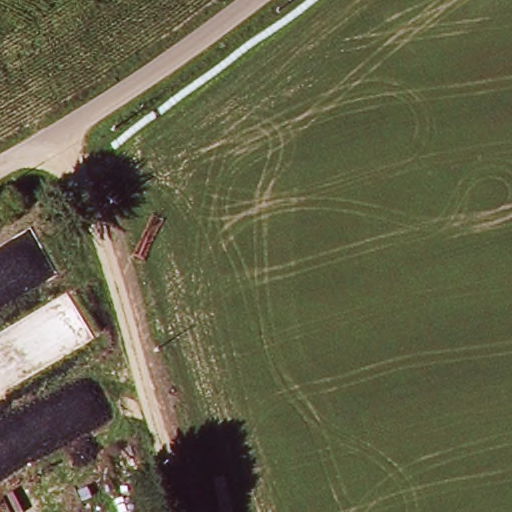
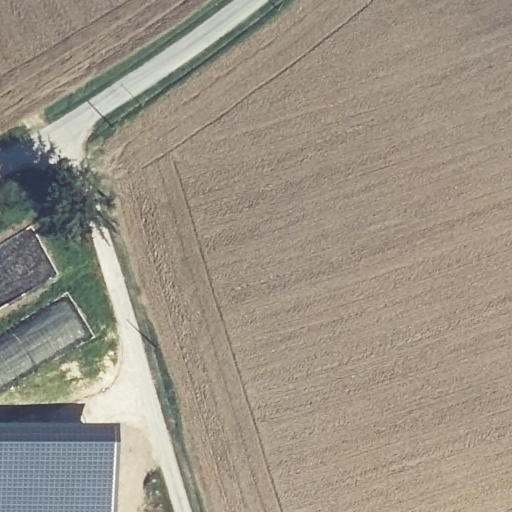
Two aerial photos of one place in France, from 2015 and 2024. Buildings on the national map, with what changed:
new [(48,430),(109,432),(110,512),(0,512),(0,430),(48,430)]

